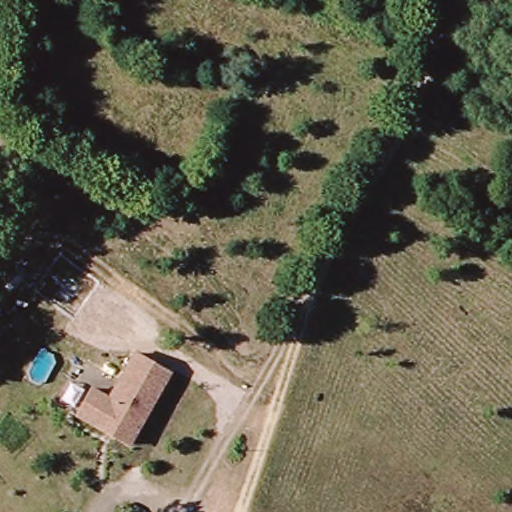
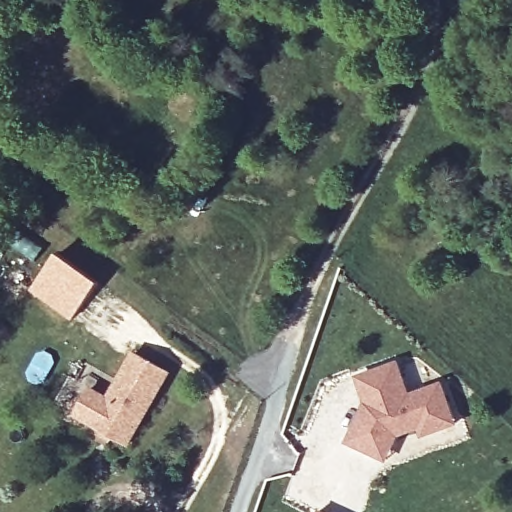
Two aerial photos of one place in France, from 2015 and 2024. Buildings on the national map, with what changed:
new [(60,254),(101,283),(74,320),(33,290),(60,254)]
unchanged [(76,418),(89,391),(108,400),(135,355),(168,374),(129,445),(76,418)]
new [(377,452),(348,440),(360,416),(365,418),(370,408),(357,375),(397,360),(410,393),(442,381),(456,420),(423,432),(421,424),(398,432),(393,442),(387,456),(377,452)]
new [(318,510),(323,512),(318,512),(318,510)]

